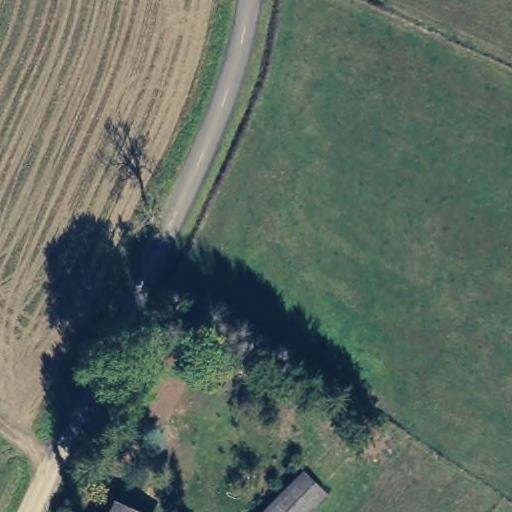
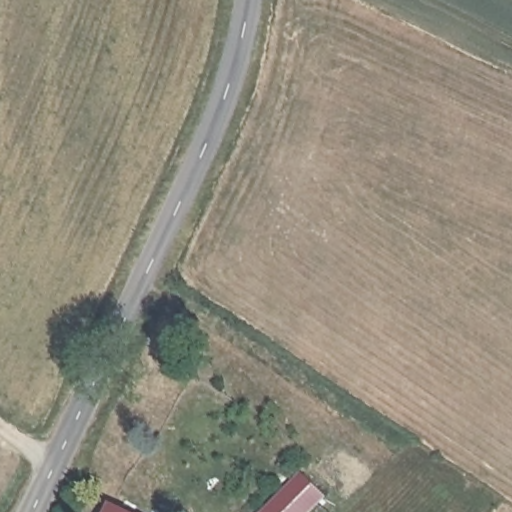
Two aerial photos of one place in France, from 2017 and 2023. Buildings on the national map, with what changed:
unchanged [(299,476),(320,498),(306,512),(263,512),(299,476)]
unchanged [(127,512),(107,512),(111,505),(127,512)]

